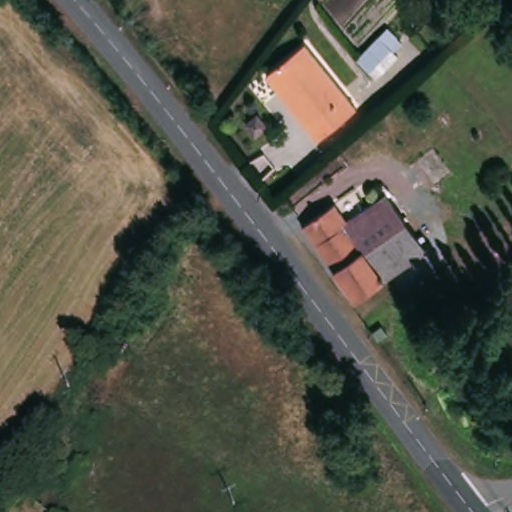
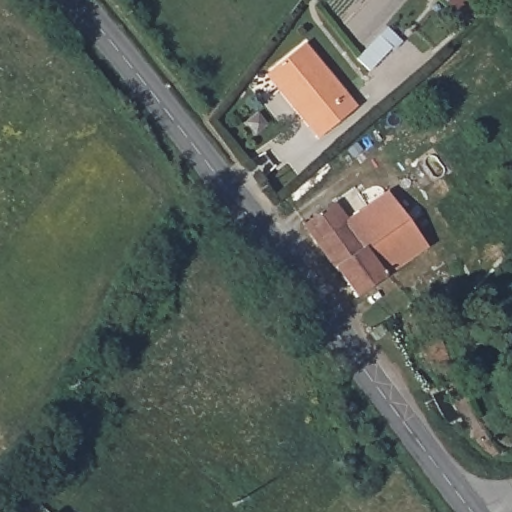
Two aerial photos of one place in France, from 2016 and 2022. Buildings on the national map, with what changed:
unchanged [(476,4),(464,18),(442,0),(471,0),(476,4)]
unchanged [(399,51),(406,57),(380,80),(362,58),(391,26),(408,42),(399,51)]
unchanged [(276,66),(309,39),(361,102),(322,136),(308,119),(269,72),(276,66)]
unchanged [(427,247),(360,297),(309,225),(337,204),(349,221),(389,194),(427,247)]
unchanged [(479,283),(467,271),(480,258),(492,270),(479,283)]
unchanged [(385,331),(375,341),(368,332),(378,324),(385,331)]

